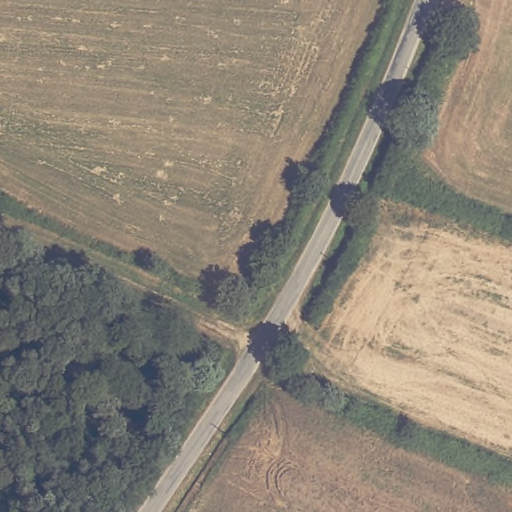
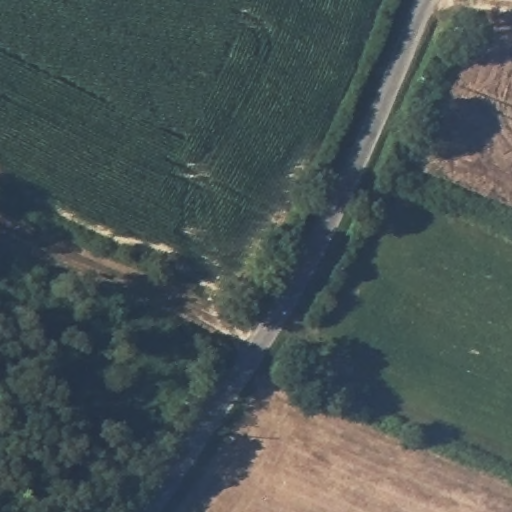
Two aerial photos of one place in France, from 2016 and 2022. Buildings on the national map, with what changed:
[]

